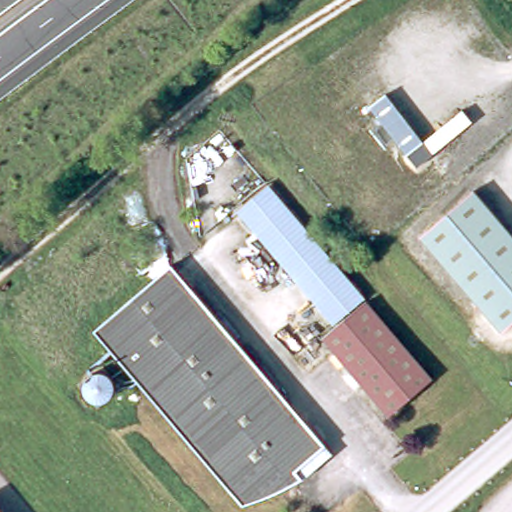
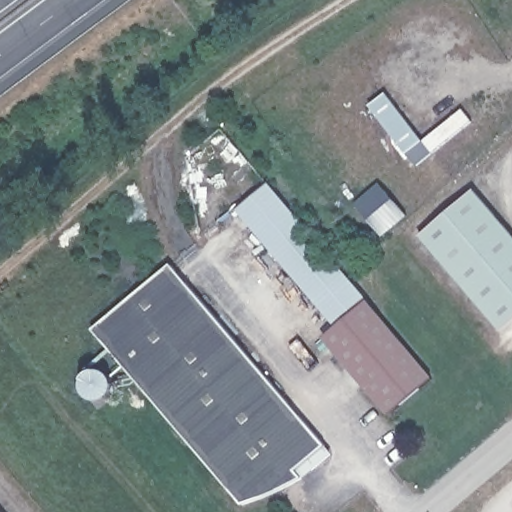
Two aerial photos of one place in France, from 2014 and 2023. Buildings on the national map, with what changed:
unchanged [(368,101),(384,89),(421,139),(406,151),(368,101)]
unchanged [(473,121),(431,153),(421,139),(462,108),(473,121)]
new [(407,216),(386,236),(355,204),(377,184),(407,216)]
unchanged [(369,301),(339,327),(244,213),(274,187),(369,301)]
unchanged [(512,328),(508,331),(427,234),(482,190),(512,227),(512,328)]
unchanged [(336,454),(318,471),(310,464),(302,473),(307,480),(248,508),(100,333),(177,266),(336,454)]
unchanged [(371,302),(438,380),(394,418),(327,340),(371,302)]
unchanged [(93,379),(96,376),(100,373),(105,373),(110,374),(114,377),(118,380),(118,385),(118,390),(116,394),(113,398),(109,400),(100,400),(96,398),(93,395),(91,390),(90,385),(91,384),(93,379)]
unchanged [(5,512),(0,512),(0,506),(5,512)]

